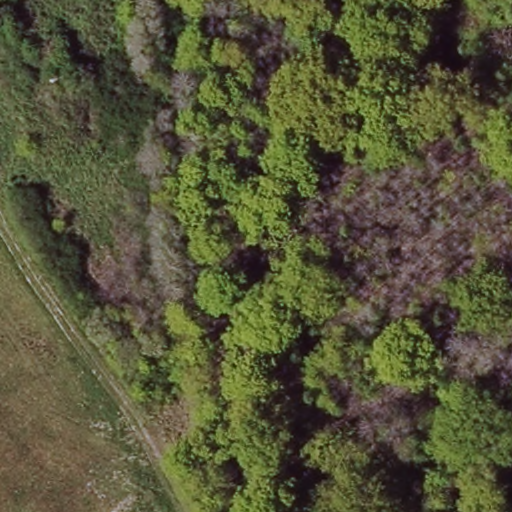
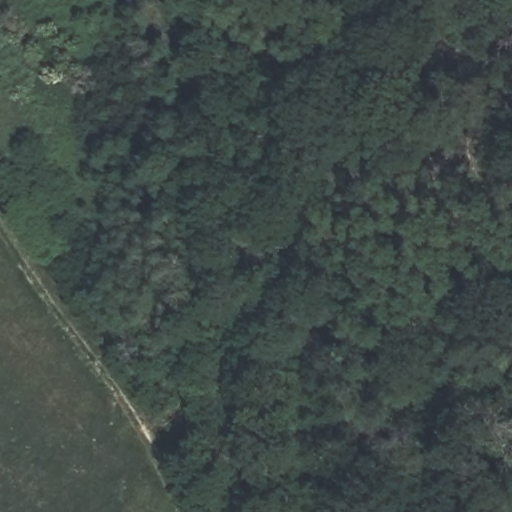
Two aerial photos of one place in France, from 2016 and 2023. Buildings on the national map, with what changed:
unchanged [(251,484),(251,488),(226,488),(226,462),(254,462),(251,484)]

